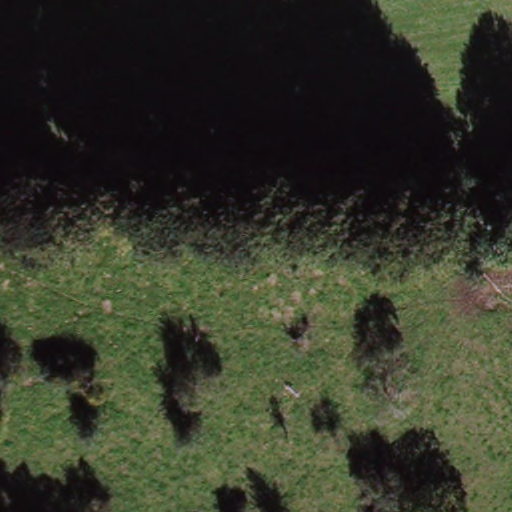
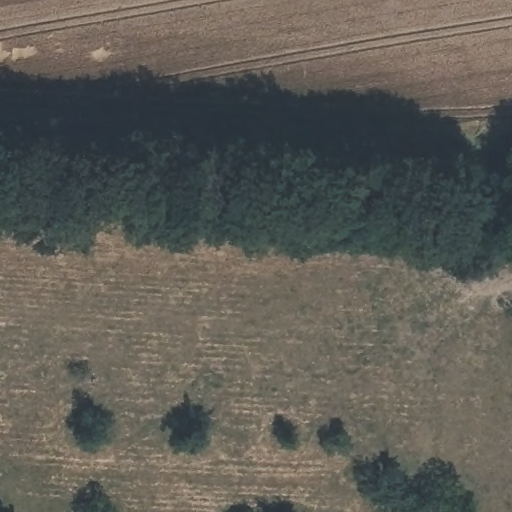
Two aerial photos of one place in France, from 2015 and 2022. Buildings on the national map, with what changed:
unchanged [(479,258),(476,225),(512,222),(512,256),(479,258)]

